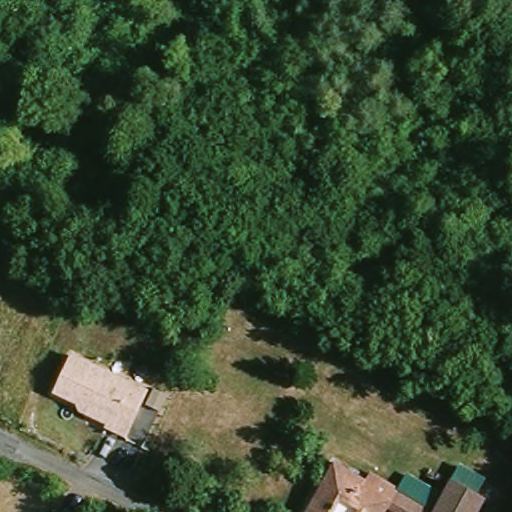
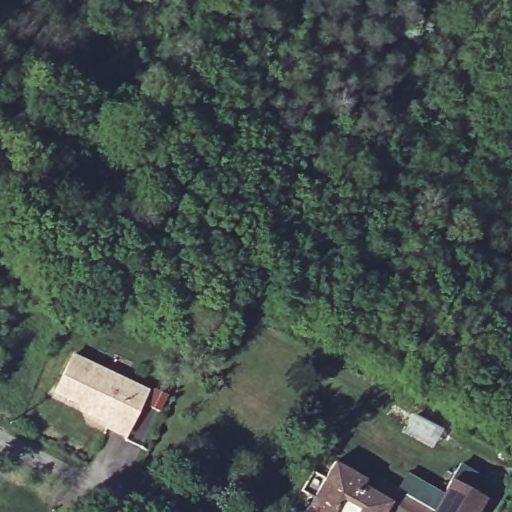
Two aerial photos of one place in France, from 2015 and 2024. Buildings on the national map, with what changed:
unchanged [(129,433),(108,424),(109,420),(96,414),(94,408),(54,389),(70,353),(149,389),(129,433)]
unchanged [(163,408),(149,402),(156,385),(170,392),(163,408)]
unchanged [(372,486),(400,503),(395,512),(351,512),(349,511),(348,512),(322,512),(348,468),(374,482),(372,486)]
unchanged [(381,471),(448,505),(443,512),(418,512),(400,503),(372,486),(374,482),(381,471)]
unchanged [(462,479),(496,496),(487,512),(443,512),(448,505),(462,479)]

